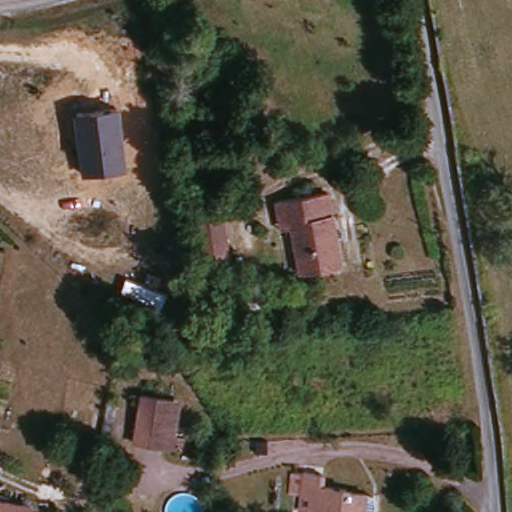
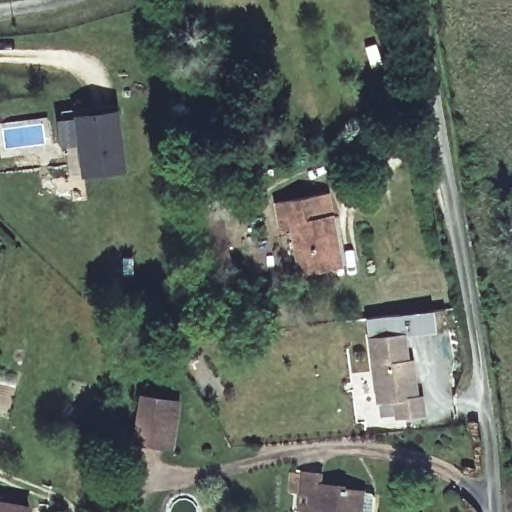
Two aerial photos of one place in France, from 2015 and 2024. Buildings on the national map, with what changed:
unchanged [(119,109),(126,171),(81,178),(74,115),(119,109)]
unchanged [(309,274),(300,230),(292,230),(285,203),(338,195),(352,267),(309,274)]
unchanged [(228,266),(204,271),(193,215),(218,211),(228,266)]
new [(410,358),(414,358),(418,395),(424,394),(427,416),(396,420),(394,401),(375,403),(368,338),(406,333),(410,358)]
unchanged [(184,441),(141,436),(145,400),(189,405),(184,441)]
unchanged [(371,512),(315,512),(306,511),(305,490),(308,471),(327,471),(325,488),(371,484),(371,512)]
unchanged [(0,499),(38,504),(37,512),(0,512),(0,499)]

